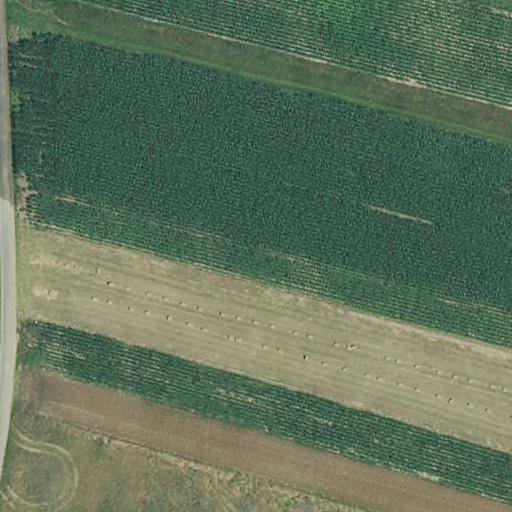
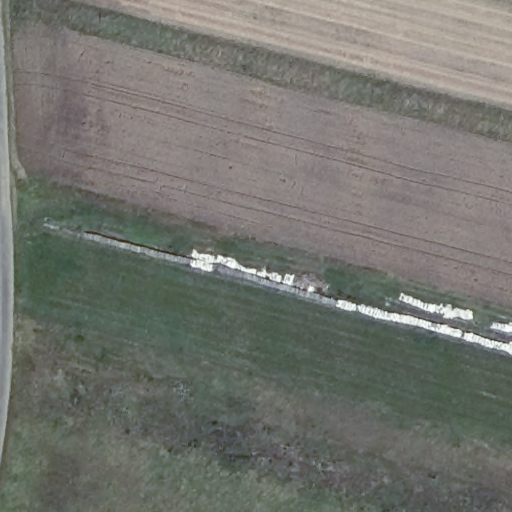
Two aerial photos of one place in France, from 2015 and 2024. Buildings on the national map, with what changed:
[]

